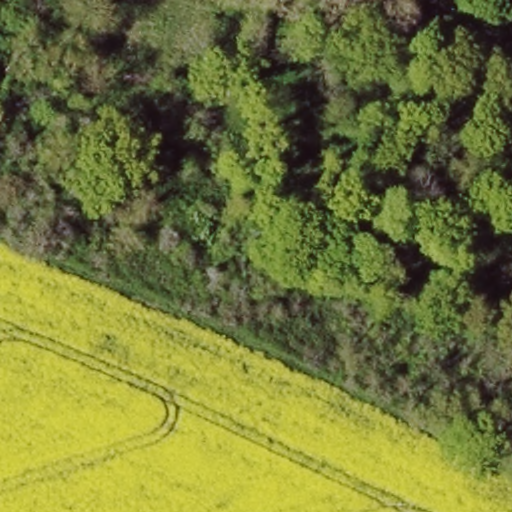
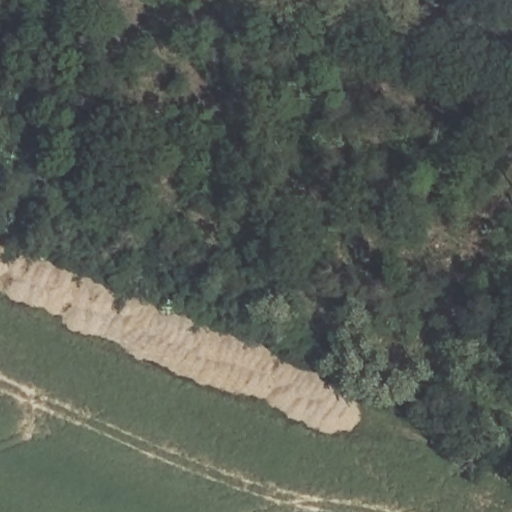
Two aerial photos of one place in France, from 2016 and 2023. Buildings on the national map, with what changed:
unchanged [(11,49),(30,0),(64,0),(39,61),(11,49)]
unchanged [(206,74),(227,77),(226,105),(203,99),(206,74)]

